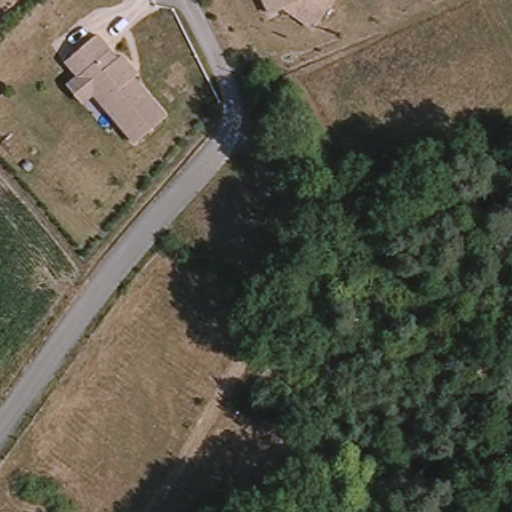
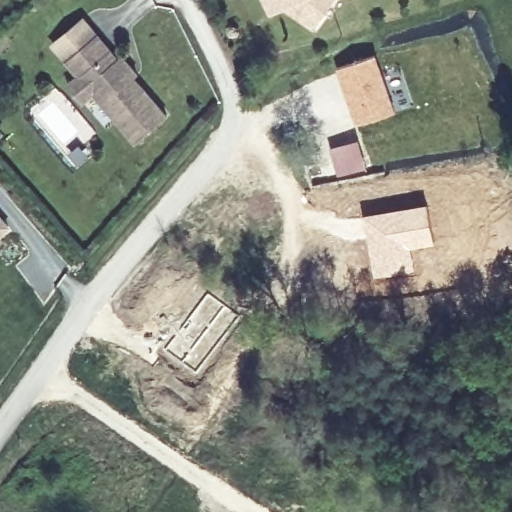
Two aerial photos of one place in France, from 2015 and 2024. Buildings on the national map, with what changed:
unchanged [(293,6),(288,3),(275,10),(270,0),(335,0),(318,24),(293,6)]
unchanged [(170,115),(139,141),(69,59),(100,33),(120,57),(124,54),(132,64),(132,71),(170,115)]
new [(376,54),(396,112),(356,126),(335,67),(376,54)]
new [(356,141),(364,170),(335,178),(328,148),(356,141)]
new [(427,202),(435,243),(411,248),(415,270),(375,278),(362,214),(427,202)]
new [(0,229),(0,215),(7,223),(0,229)]

